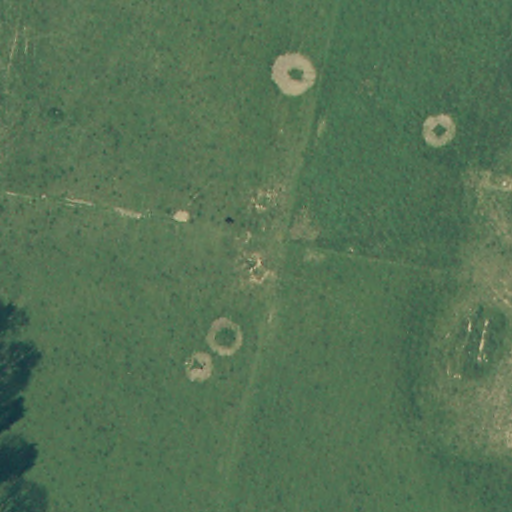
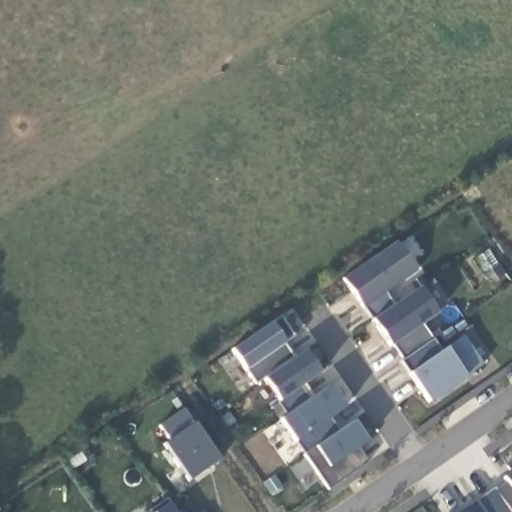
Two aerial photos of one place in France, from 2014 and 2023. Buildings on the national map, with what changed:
new [(344,280),(396,242),(416,271),(386,292),(394,306),(420,288),(438,315),(424,324),(442,351),(463,336),(484,365),(467,378),(431,404),(344,280)]
new [(280,402),(263,377),(256,383),(247,370),(232,350),(281,317),(295,337),(284,345),(293,358),(305,351),(321,373),(301,387),(309,398),(287,414),(280,402)]
new [(309,398),(332,387),(345,408),(327,421),(335,433),(355,420),(369,442),(359,449),(369,462),(327,491),(293,442),(279,420),(287,414),(309,398)]
new [(163,444),(169,439),(159,426),(184,410),(194,423),(219,460),(189,481),(163,444)]
new [(495,488),(496,491),(507,483),(503,477),(510,471),(506,466),(512,461),(512,512),(460,512),(495,488)]
new [(169,500),(177,512),(153,512),(169,500)]

